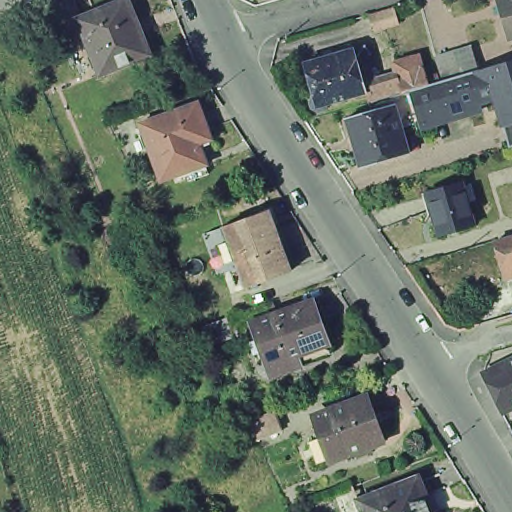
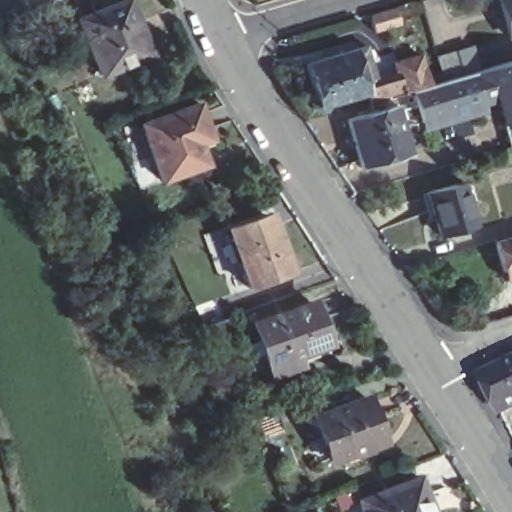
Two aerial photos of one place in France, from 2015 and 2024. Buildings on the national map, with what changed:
unchanged [(112,0),(127,0),(134,18),(130,20),(134,30),(138,29),(146,51),(96,70),(73,16),(112,0)]
unchanged [(499,0),(512,0),(512,37),(509,38),(499,0)]
unchanged [(370,11),(395,4),(400,19),(374,27),(370,11)]
unchanged [(412,154),(365,167),(350,121),(394,108),(391,97),(369,104),(366,95),(317,108),(305,64),(353,51),(365,47),(371,67),(376,85),(388,82),(399,79),(405,77),(400,61),(420,55),(431,86),(447,81),(441,56),(460,51),(461,52),(475,48),(481,71),(488,69),(496,98),(501,113),(486,118),(428,136),(424,122),(410,126),(405,128),(412,154)]
unchanged [(505,125),(501,113),(496,98),(488,69),(512,62),(512,145),(510,146),(505,125)]
unchanged [(184,184),(180,174),(158,182),(143,142),(148,140),(142,126),(137,128),(136,126),(193,105),(206,140),(195,145),(202,165),(200,166),(203,176),(184,184)]
unchanged [(430,212),(423,193),(457,183),(463,203),(467,217),(470,225),(436,236),(433,227),(430,212)]
unchanged [(291,272),(249,287),(240,261),(226,266),(214,231),(227,227),(264,214),(269,213),(273,225),(278,238),(291,272)]
unchanged [(512,239),(512,271),(504,273),(495,244),(512,239)]
unchanged [(297,367),(277,374),(269,351),(262,353),(258,342),(265,340),(259,323),(317,303),(332,343),(336,353),(297,367)]
unchanged [(240,334),(213,344),(205,325),(233,315),(240,334)]
unchanged [(481,377),(512,361),(512,411),(501,417),(481,377)]
unchanged [(330,454),(316,459),(308,438),(323,432),(315,412),(366,395),(383,439),(368,444),(370,450),(358,455),(355,449),(332,457),(330,454)]
unchanged [(250,420),(279,409),(285,427),(257,437),(250,420)]
unchanged [(420,468),(429,491),(425,492),(430,505),(436,503),(440,512),(367,512),(359,491),(420,468)]

